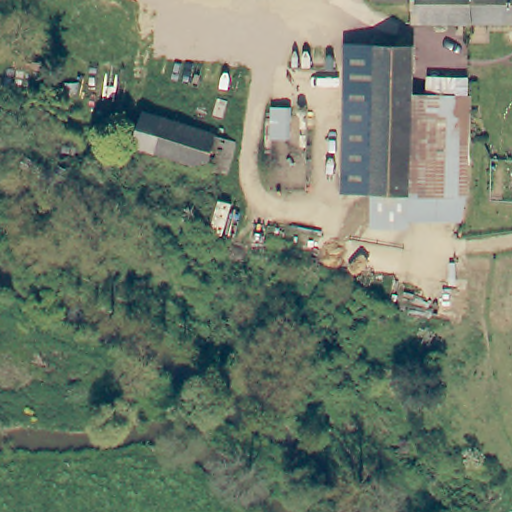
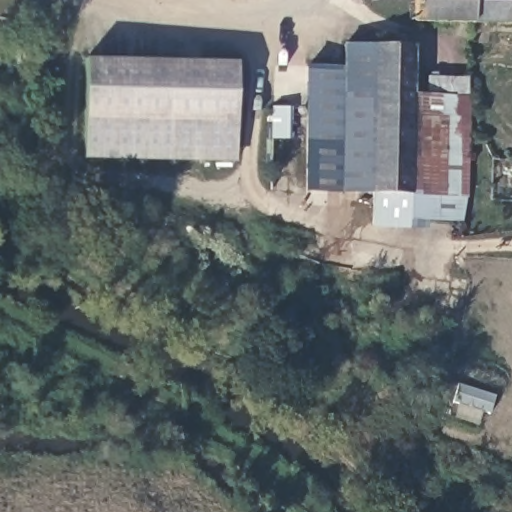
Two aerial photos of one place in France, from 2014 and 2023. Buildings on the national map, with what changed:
unchanged [(512,21),(411,19),(412,0),(512,0),(512,21)]
unchanged [(337,193),(340,44),(372,45),(370,194),(337,193)]
unchanged [(370,194),(372,45),(411,46),(410,93),(409,195),(370,194)]
new [(238,62),(235,161),(82,158),(86,59),(238,62)]
new [(337,193),(306,191),(307,68),(340,68),(337,193)]
unchanged [(410,93),(470,94),(465,198),(457,221),(408,220),(409,195),(410,93)]
unchanged [(288,138),(272,138),(273,108),(289,109),(288,138)]
demolished [(145,113),(235,143),(225,172),(225,173),(135,142),(145,113)]
unchanged [(408,227),(370,225),(370,194),(409,195),(408,220),(408,227)]

